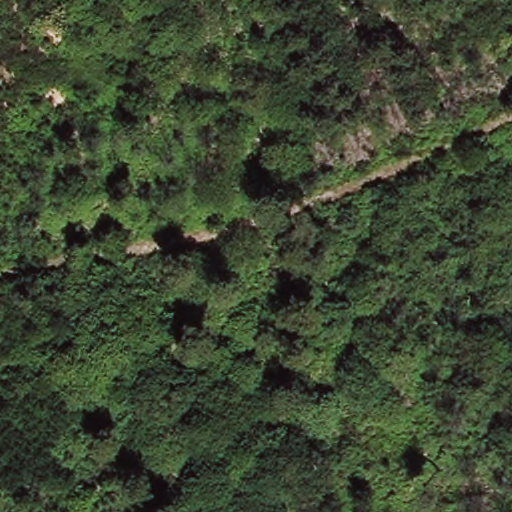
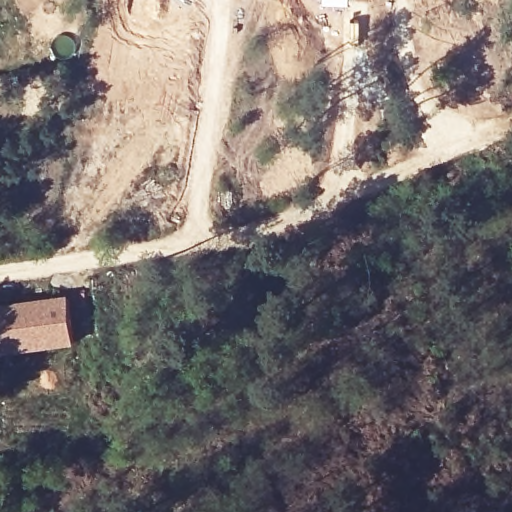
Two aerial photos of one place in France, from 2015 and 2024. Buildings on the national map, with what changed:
new [(348,7),(320,6),(320,0),(348,0),(348,7)]
new [(2,355),(0,339),(0,305),(69,296),(76,346),(2,355)]

